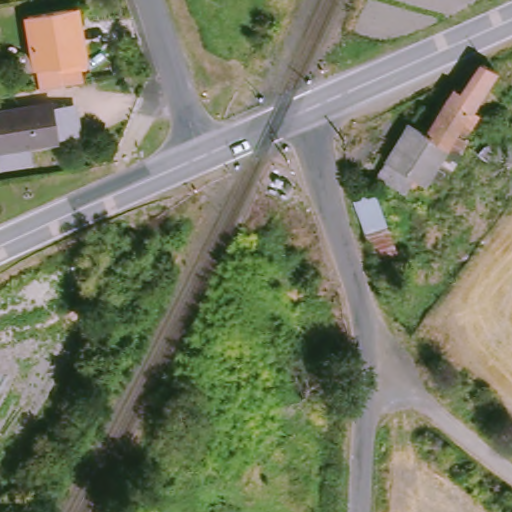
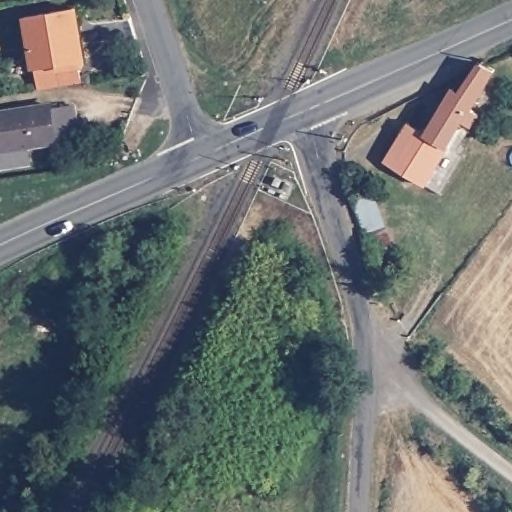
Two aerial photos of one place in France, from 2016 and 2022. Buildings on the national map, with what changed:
unchanged [(39,89),(26,14),(74,6),(78,29),(73,30),(81,83),(39,89)]
unchanged [(383,160),(407,126),(421,136),(451,94),(459,100),(468,88),(478,75),(489,81),(472,108),(477,112),(466,128),(463,126),(421,186),(383,160)]
unchanged [(0,159),(0,108),(50,99),(56,136),(30,141),(33,156),(0,163),(0,159)]
unchanged [(401,270),(376,277),(349,197),(373,188),(401,270)]

